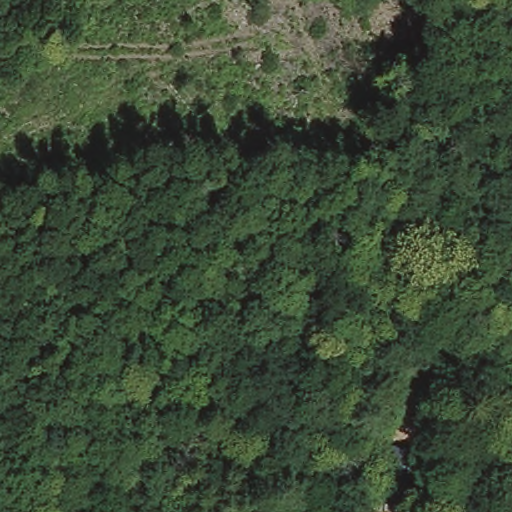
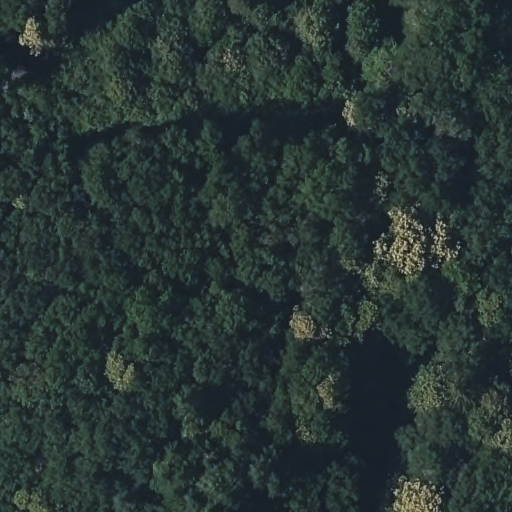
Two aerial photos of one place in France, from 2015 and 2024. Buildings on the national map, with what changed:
unchanged [(420,412),(418,441),(392,436),(394,408),(420,412)]

